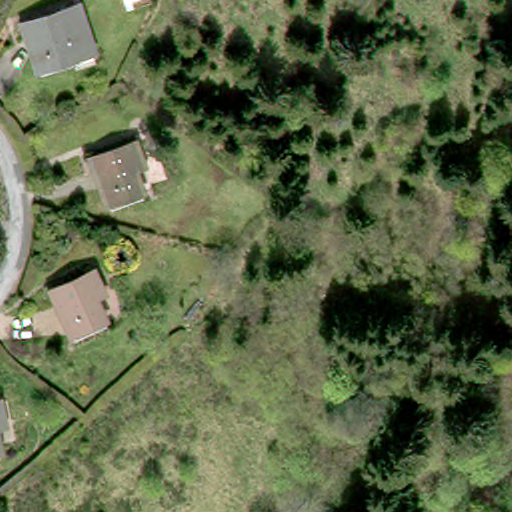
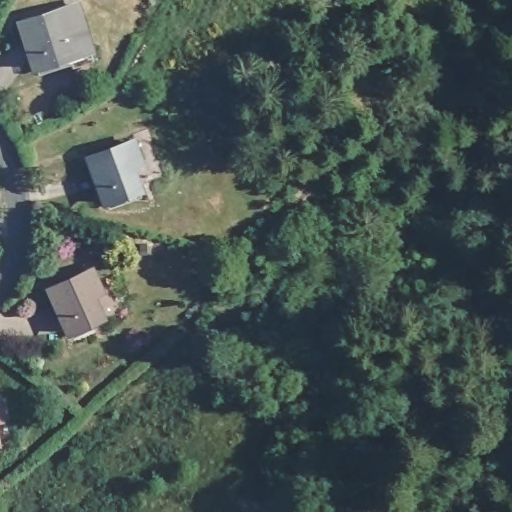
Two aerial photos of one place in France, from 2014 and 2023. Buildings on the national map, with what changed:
unchanged [(40,68),(23,25),(78,4),(94,48),(98,59),(77,67),(75,63),(42,75),(40,68)]
unchanged [(142,170),(133,174),(140,192),(108,205),(92,164),(133,147),(142,170)]
unchanged [(102,297),(94,301),(102,320),(69,336),(49,292),(91,273),(102,297)]
unchanged [(4,427),(0,428),(0,404),(4,427)]

